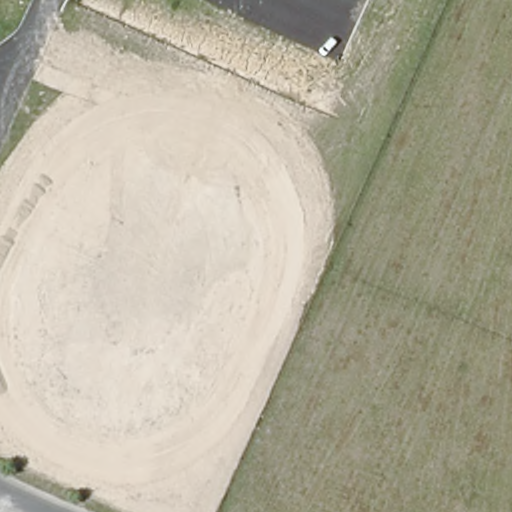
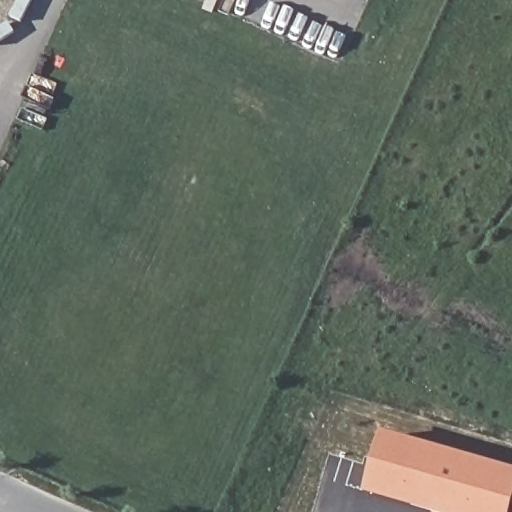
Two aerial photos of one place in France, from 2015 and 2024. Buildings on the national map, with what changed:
new [(512,469),(512,512),(430,512),(366,494),(383,431),(512,469)]

